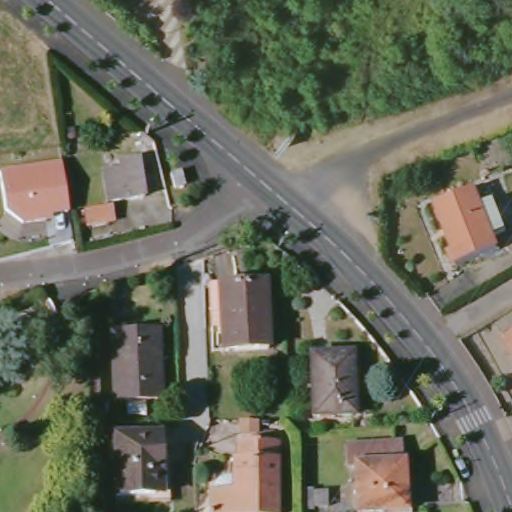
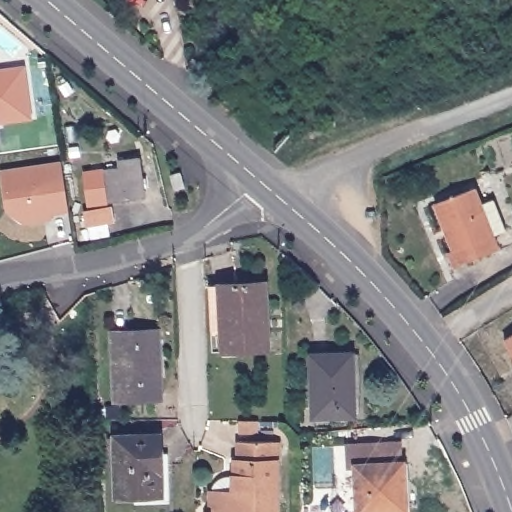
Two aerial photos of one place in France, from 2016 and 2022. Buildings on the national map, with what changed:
new [(31,112),(0,117),(0,69),(24,66),(31,112)]
unchanged [(125,130),(132,129),(142,137),(144,147),(129,151),(125,130)]
unchanged [(99,165),(116,162),(115,155),(135,152),(141,192),(121,195),(104,197),(99,165)]
unchanged [(63,161),(72,215),(53,217),(54,222),(24,226),(6,211),(1,171),(63,161)]
unchanged [(173,177),(182,173),(186,187),(176,190),(173,177)]
unchanged [(453,252),(434,205),(474,189),(481,205),(494,199),(507,231),(494,237),(499,250),(454,267),(449,254),(453,252)]
unchanged [(108,201),(110,217),(84,222),(82,206),(108,201)]
unchanged [(221,283),(266,282),(268,350),(223,351),(221,283)]
unchanged [(115,399),(114,332),(154,331),(161,331),(161,356),(161,397),(115,399)]
unchanged [(504,340),(512,336),(512,352),(504,340)]
unchanged [(313,355),(353,355),(354,417),(314,417),(313,355)]
unchanged [(116,436),(159,435),(161,496),(118,497),(116,436)]
unchanged [(356,466),(349,466),(349,446),(400,444),(401,463),(404,462),(405,511),(369,512),(357,512),(356,466)]
unchanged [(238,482),(239,464),(242,464),(243,446),(279,447),(278,458),(283,458),(282,512),(216,512),(216,496),(226,496),(226,482),(238,482)]
unchanged [(316,491),(328,490),(328,507),(316,507),(316,491)]

